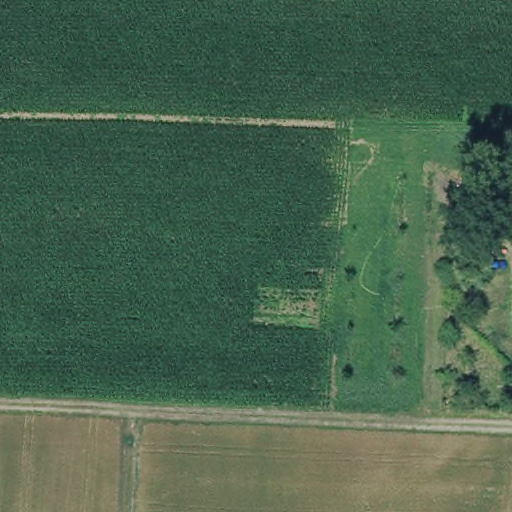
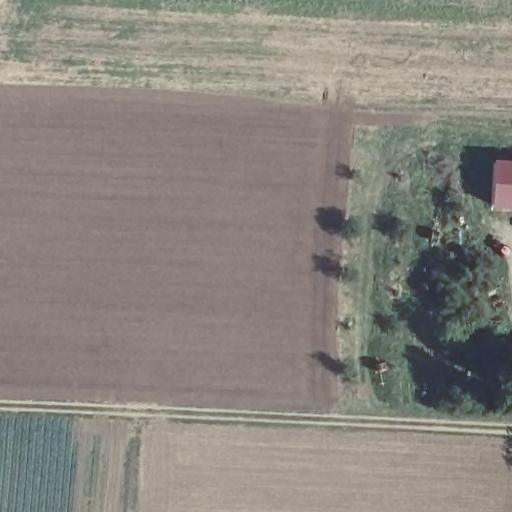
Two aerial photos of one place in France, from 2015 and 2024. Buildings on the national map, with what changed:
new [(512,162),(512,210),(492,209),(493,161),(512,162)]

